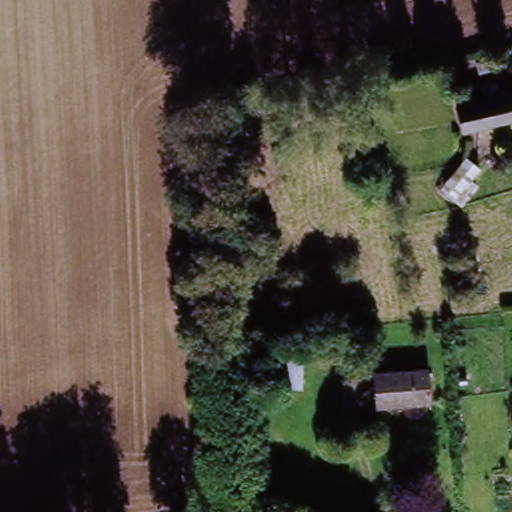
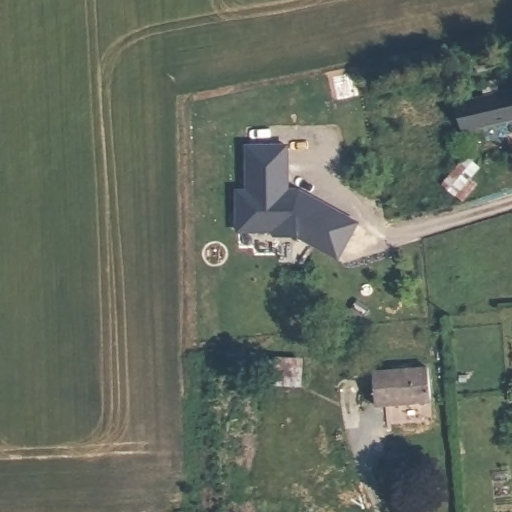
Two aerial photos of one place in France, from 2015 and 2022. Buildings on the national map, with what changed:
unchanged [(452,126),(446,97),(512,83),(512,115),(452,126)]
new [(247,194),(246,149),(286,147),(287,193),(299,192),(299,197),(311,203),(312,199),(358,222),(340,258),(299,237),(276,238),(272,234),(239,235),(237,194),(247,194)]
unchanged [(483,170),(477,178),(482,183),(471,197),(452,184),(456,177),(470,159),(483,170)]
unchanged [(367,373),(422,369),(425,400),(370,405),(367,373)]

